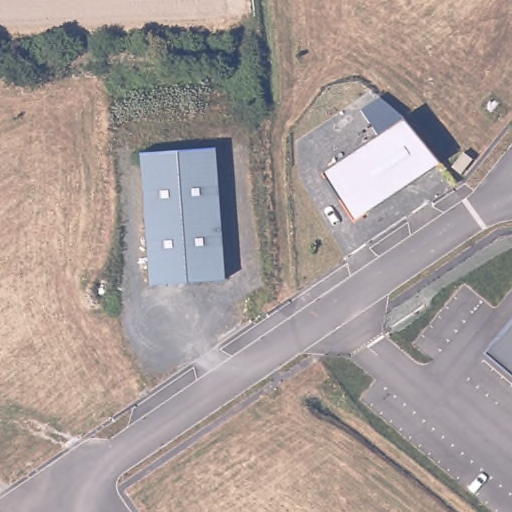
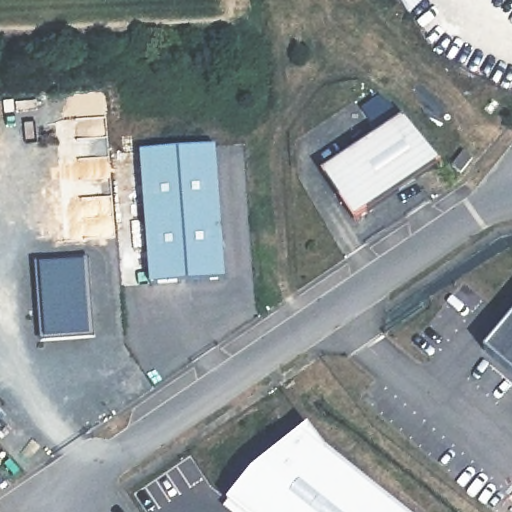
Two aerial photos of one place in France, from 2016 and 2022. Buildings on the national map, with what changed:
new [(399,6),(396,0),(405,0),(399,6)]
unchanged [(353,221),(321,172),(379,134),(362,109),(379,97),(390,104),(401,119),(404,117),(441,162),(353,221)]
unchanged [(226,279),(151,283),(141,153),(215,147),(226,279)]
new [(90,257),(95,337),(40,342),(34,262),(90,257)]
unchanged [(512,319),(512,376),(484,352),(512,319)]
new [(309,426),(324,448),(405,512),(241,512),(228,502),(251,470),(309,426)]

